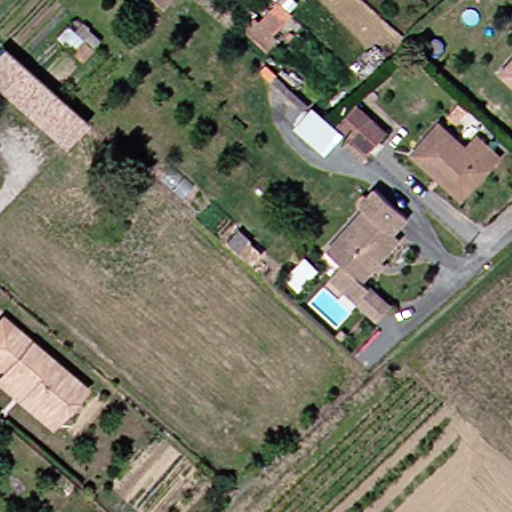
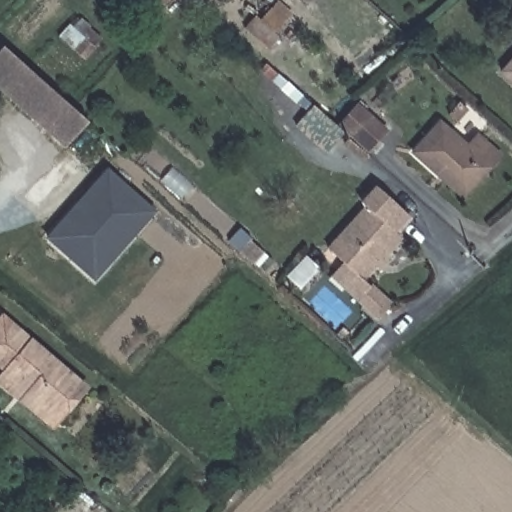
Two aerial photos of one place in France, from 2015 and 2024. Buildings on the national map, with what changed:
unchanged [(156,0),(183,0),(165,20),(150,7),(156,0)]
unchanged [(7,50),(79,111),(94,124),(73,147),(0,85),(0,58),(7,50)]
unchanged [(512,54),(512,89),(494,73),(512,54)]
new [(372,148),(341,121),(359,101),(389,129),(372,148)]
new [(313,104),(345,132),(326,152),(295,124),(313,104)]
demolished [(374,167),(344,140),(361,121),(392,149),(374,167)]
unchanged [(430,174),(403,149),(429,122),(455,147),(468,134),(491,155),(459,190),(454,196),(430,174)]
new [(94,282),(44,238),(107,169),(156,212),(94,282)]
unchanged [(398,237),(361,280),(387,302),(381,309),(376,305),(371,310),(323,268),(335,255),(328,249),(366,207),(362,203),(376,188),(406,215),(392,232),(398,237)]
unchanged [(300,290),(288,280),(306,259),(318,269),(300,290)]
unchanged [(0,389),(0,320),(2,322),(79,384),(51,418),(45,426),(0,389)]

